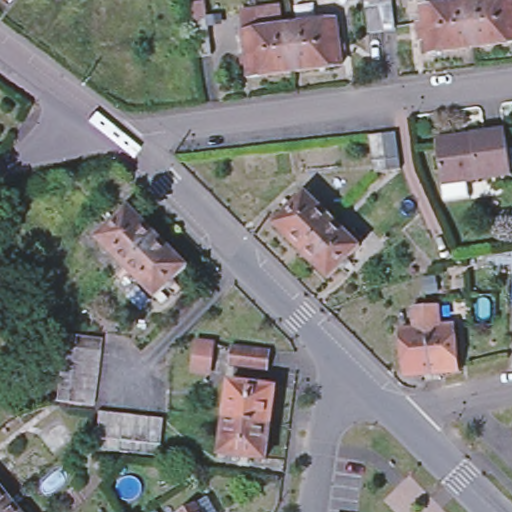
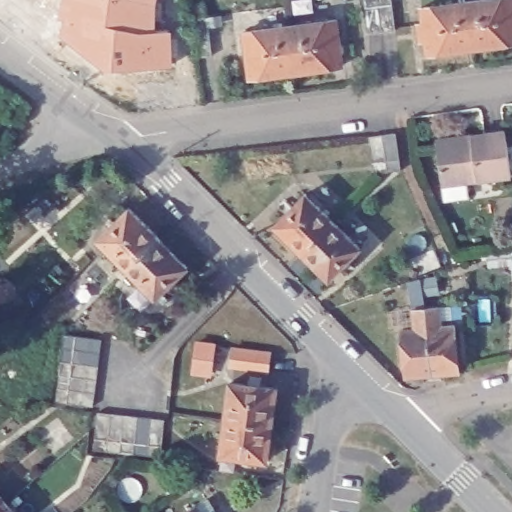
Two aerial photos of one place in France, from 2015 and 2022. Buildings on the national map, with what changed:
demolished [(6,0),(9,0),(8,1),(6,0)]
new [(155,35),(170,35),(170,71),(103,75),(58,39),(63,22),(57,20),(62,0),(157,0),(155,6),(155,35)]
unchanged [(385,32),(370,35),(365,0),(394,0),(398,30),(385,32)]
unchanged [(475,0),(511,0),(512,5),(512,41),(472,46),(466,1),(475,0)]
unchanged [(471,46),(425,52),(423,40),(418,40),(416,25),(421,24),(419,8),(466,1),(472,46),(471,46)]
unchanged [(216,55),(202,57),(199,19),(212,17),(216,55)]
unchanged [(288,31),(333,25),(338,65),(293,71),(288,31)]
unchanged [(246,77),(242,37),(288,31),(293,71),(289,72),(246,77)]
unchanged [(453,136),(458,140),(470,139),(470,134),(504,129),(510,174),(440,182),(436,144),(440,138),(453,136)]
unchanged [(374,173),(370,136),(382,135),(396,133),(400,170),(386,171),(385,171),(374,173)]
unchanged [(300,254),(273,226),(306,194),(333,221),(300,254)]
unchanged [(97,243),(130,212),(158,240),(126,272),(97,243)]
unchanged [(300,254),(333,221),(360,249),(327,282),(301,255),(300,254)]
unchanged [(158,240),(187,271),(156,302),(126,272),(158,240)]
unchanged [(415,336),(415,315),(425,313),(439,312),(441,335),(455,334),(458,377),(431,379),(404,381),(401,336),(415,336)]
unchanged [(59,388),(60,376),(62,361),(65,345),(66,333),(101,338),(100,351),(97,366),(95,380),(93,393),(92,405),(57,400),(59,388)]
unchanged [(275,349),(271,369),(217,362),(215,375),(190,373),(195,337),(275,349)]
unchanged [(230,381),(275,387),(270,422),(225,417),(230,381)]
unchanged [(147,453),(135,452),(120,450),(107,449),(94,447),(100,411),(112,412),(125,414),(138,415),(151,416),(163,418),(160,455),(147,453)]
unchanged [(220,453),(225,417),(270,422),(265,459),(220,453)]
unchanged [(3,505),(0,508),(0,501),(3,505)]
unchanged [(3,505),(10,512),(0,512),(0,508),(3,505)]
unchanged [(197,505),(201,512),(185,512),(197,505)]

